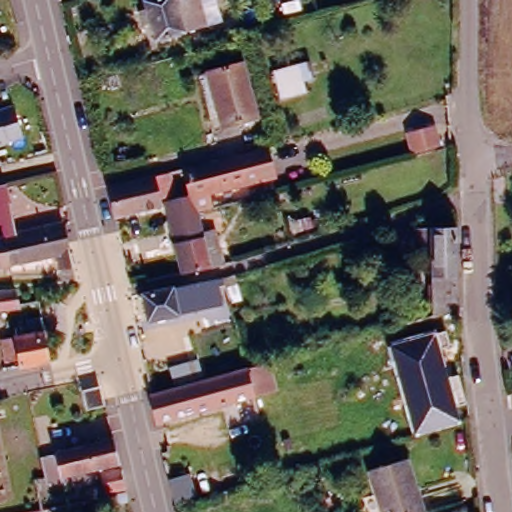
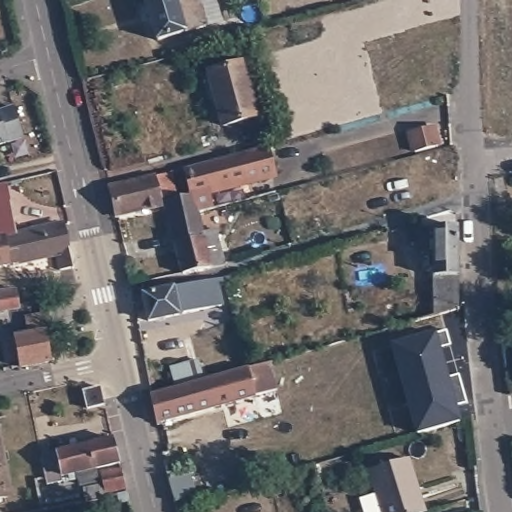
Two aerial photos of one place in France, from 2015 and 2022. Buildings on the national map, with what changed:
unchanged [(172,0),(195,0),(195,1),(202,24),(201,25),(181,30),(153,38),(147,19),(140,21),(136,7),(144,5),(142,0),(172,0)]
unchanged [(223,122),(209,69),(244,60),(258,113),(223,122)]
unchanged [(302,62),(310,90),(272,99),(266,70),(302,62)]
unchanged [(0,113),(10,110),(18,139),(0,144),(0,113)]
unchanged [(430,129),(435,148),(413,154),(407,135),(430,129)]
unchanged [(241,151),(241,149),(265,143),(273,175),(249,180),(193,195),(192,194),(186,165),(241,151)]
unchanged [(154,174),(169,170),(175,190),(159,195),(161,204),(138,209),(116,215),(109,185),(131,180),(154,174)]
unchanged [(72,250),(76,266),(61,270),(57,254),(57,252),(15,262),(14,262),(8,263),(2,237),(0,237),(0,182),(6,180),(10,200),(17,234),(64,222),(69,250),(72,250)]
unchanged [(168,201),(167,200),(192,194),(193,195),(197,210),(202,232),(217,229),(225,260),(222,261),(155,277),(147,279),(142,258),(150,257),(179,250),(168,201)]
unchanged [(417,249),(417,230),(456,228),(458,310),(432,316),(430,249),(417,249)]
unchanged [(128,297),(179,285),(206,277),(217,275),(224,301),(212,304),(135,323),(128,297)]
unchanged [(14,308),(0,310),(0,294),(12,293),(14,308)]
unchanged [(27,319),(42,316),(45,331),(51,360),(20,365),(18,356),(5,360),(0,340),(14,336),(29,334),(27,319)]
unchanged [(415,435),(389,346),(446,331),(450,346),(442,348),(449,377),(457,376),(466,405),(457,406),(460,422),(415,435)]
unchanged [(200,356),(204,372),(179,380),(174,363),(200,356)]
unchanged [(155,393),(251,366),(271,363),(278,388),(258,392),(161,420),(155,393)]
unchanged [(102,387),(106,406),(88,410),(84,390),(102,387)]
unchanged [(44,481),(43,475),(40,455),(57,452),(56,450),(114,435),(120,460),(92,465),(95,482),(76,487),(72,470),(61,472),(62,477),(44,481)]
unchanged [(0,495),(0,450),(9,493),(0,495)]
unchanged [(420,509),(410,512),(380,512),(367,466),(406,455),(420,509)]
unchanged [(100,470),(122,468),(127,487),(102,486),(100,470)]
unchanged [(191,475),(197,497),(174,503),(169,481),(191,475)]

